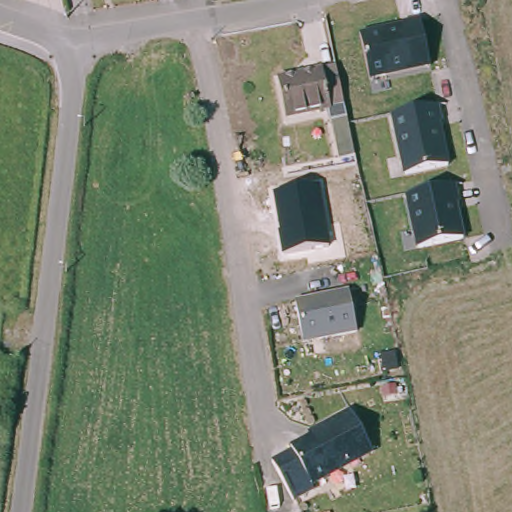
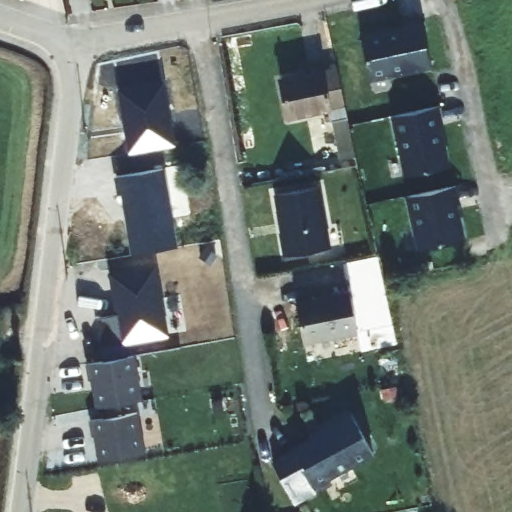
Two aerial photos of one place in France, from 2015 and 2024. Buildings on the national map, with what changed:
unchanged [(360,34),(423,20),(433,67),(370,80),(360,34)]
unchanged [(334,101),(277,114),(268,76),(325,63),(334,101)]
new [(118,90),(164,81),(175,145),(129,154),(118,90)]
unchanged [(390,115),(439,105),(452,166),(403,175),(390,115)]
unchanged [(338,157),(330,121),(346,117),(354,154),(338,157)]
new [(122,193),(117,193),(115,176),(164,168),(178,246),(131,254),(122,193)]
unchanged [(470,239),(417,251),(407,195),(458,184),(470,239)]
unchanged [(331,246),(282,255),(275,196),(322,187),(331,246)]
new [(110,274),(157,265),(169,337),(122,345),(110,274)]
unchanged [(295,300),(350,290),(357,335),(304,345),(295,300)]
new [(92,378),(88,379),(85,362),(134,356),(141,400),(95,407),(92,378)]
unchanged [(317,492),(295,504),(271,461),(292,451),(289,444),(352,410),(375,454),(315,486),(317,492)]
new [(94,435),(91,435),(89,420),(140,411),(147,455),(98,462),(94,435)]

